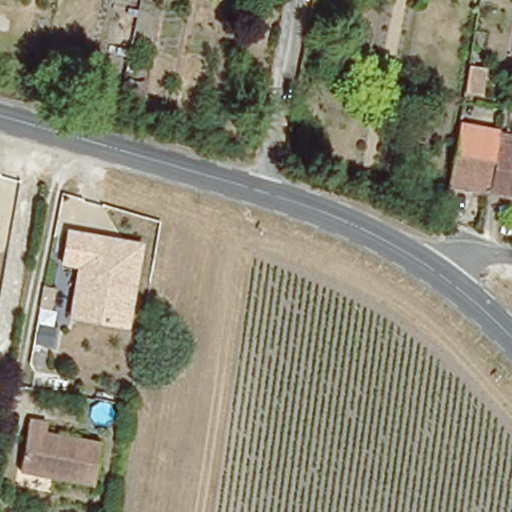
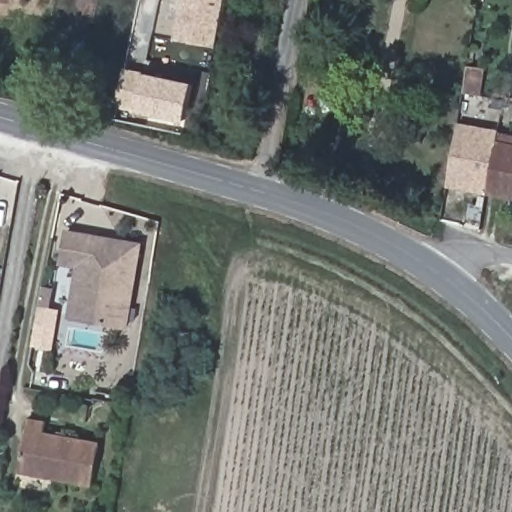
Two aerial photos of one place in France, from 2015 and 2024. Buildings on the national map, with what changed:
unchanged [(8,0),(11,0),(10,1),(8,0)]
new [(225,0),(216,47),(174,39),(181,0),(225,0)]
unchanged [(485,70),(481,96),(464,93),(468,67),(485,70)]
new [(124,68),(193,83),(184,122),(115,106),(124,68)]
unchanged [(512,197),(447,186),(458,125),(512,135),(512,197)]
unchanged [(79,269),(62,266),(68,234),(141,248),(126,330),(69,319),(79,269)]
unchanged [(46,429),(45,439),(100,449),(93,488),(20,475),(29,426),(46,429)]

